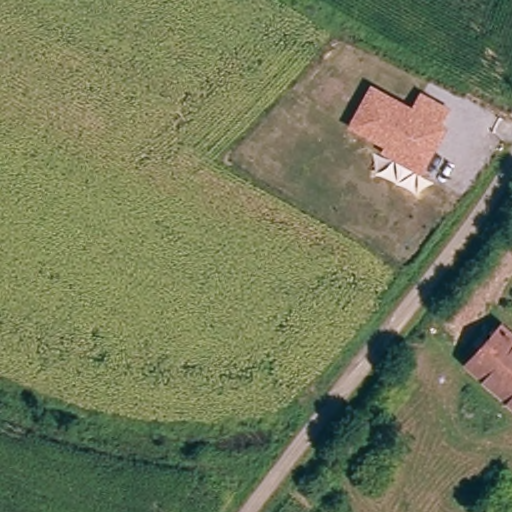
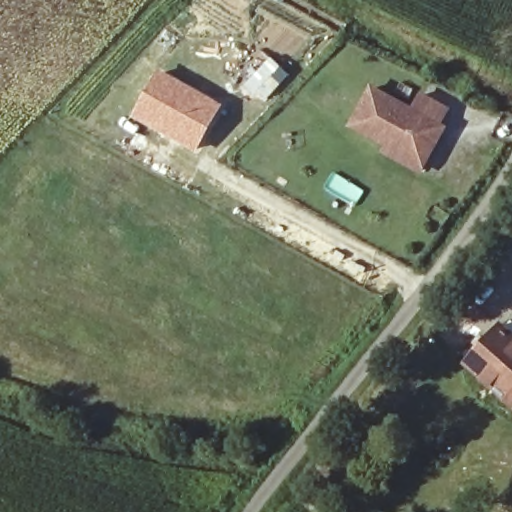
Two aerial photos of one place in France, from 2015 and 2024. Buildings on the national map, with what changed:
new [(267,56),(289,75),(260,105),(237,89),(267,56)]
new [(158,69),(222,105),(195,152),(130,118),(158,69)]
unchanged [(369,84),(412,108),(420,92),(449,109),(441,124),(448,129),(422,175),(379,153),(383,147),(347,129),(369,84)]
unchanged [(506,325),(512,331),(512,401),(468,363),(506,325)]

